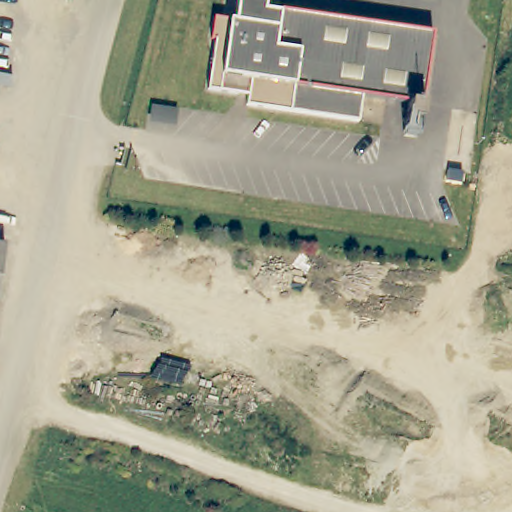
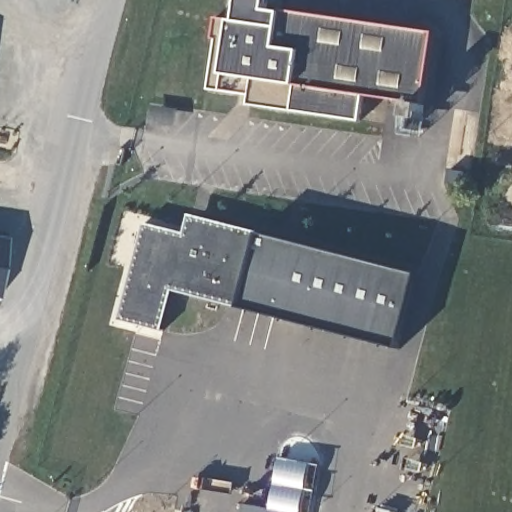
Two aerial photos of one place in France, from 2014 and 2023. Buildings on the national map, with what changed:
unchanged [(409,105),(363,98),(359,124),(247,107),(248,98),(208,91),(215,41),(211,41),(214,20),(235,23),(238,1),(238,0),(266,0),(266,1),(266,6),(265,12),(280,15),(281,11),(434,34),(423,106),(418,139),(404,137),(409,105)]
new [(400,349),(241,310),(175,290),(163,331),(120,320),(145,225),(185,235),(190,215),(263,234),(420,274),(400,349)]
unchanged [(4,239),(0,274),(0,238),(4,239)]
new [(243,505),(284,512),(242,512),(243,505)]

